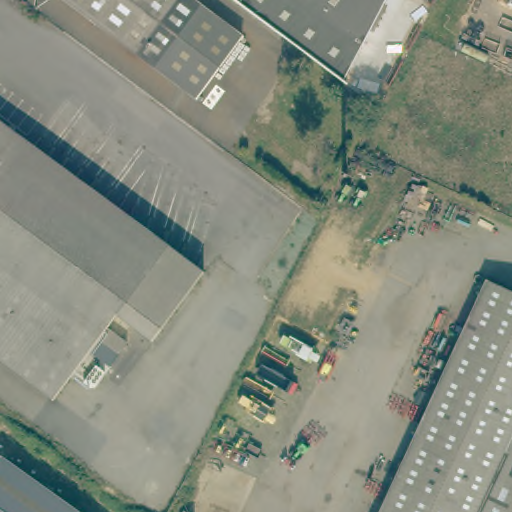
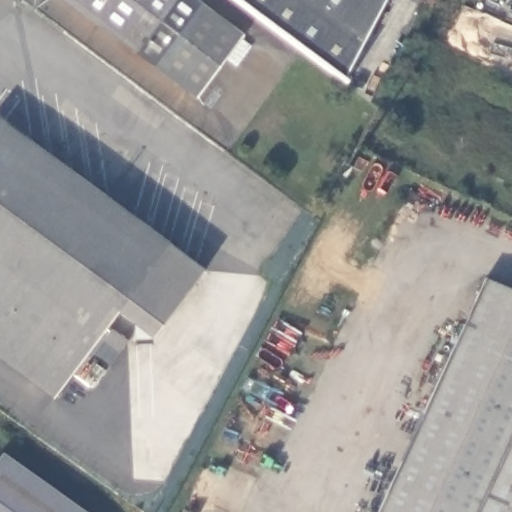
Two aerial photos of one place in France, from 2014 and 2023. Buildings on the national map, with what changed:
unchanged [(238,36),(193,97),(64,0),(190,0),(204,11),(238,36)]
unchanged [(233,0),(238,0),(236,2),(233,0)]
unchanged [(279,35),(246,11),(236,3),(236,2),(238,0),(389,0),(344,85),(279,35)]
unchanged [(204,267),(155,335),(119,309),(57,393),(0,351),(0,121),(204,267)]
unchanged [(420,418),(482,282),(512,296),(512,461),(504,458),(420,418)]
unchanged [(132,335),(123,348),(106,336),(114,323),(132,335)]
unchanged [(420,418),(504,458),(512,461),(512,512),(377,512),(420,418)]
unchanged [(1,455),(82,512),(0,512),(0,457),(1,455)]

